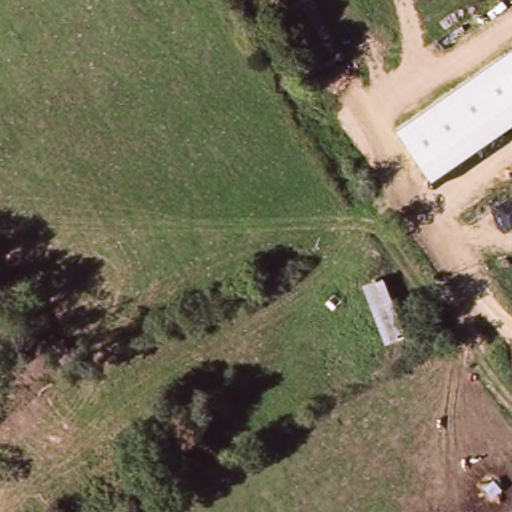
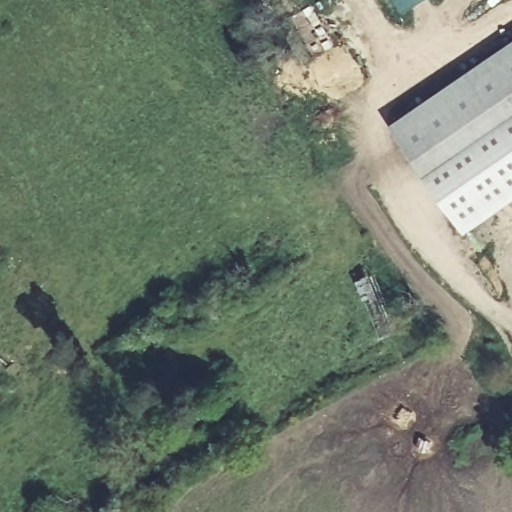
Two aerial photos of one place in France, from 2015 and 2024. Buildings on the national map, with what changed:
new [(397,0),(425,0),(404,13),(397,0)]
unchanged [(512,41),(512,116),(427,175),(391,123),(512,41)]
new [(512,116),(512,202),(466,233),(427,175),(512,116)]
unchanged [(378,273),(400,329),(379,340),(355,279),(378,273)]

